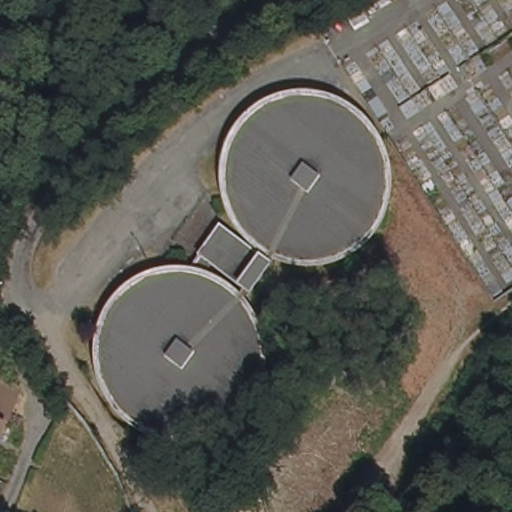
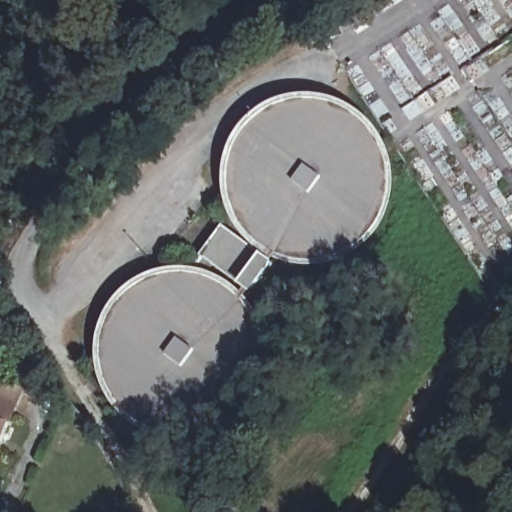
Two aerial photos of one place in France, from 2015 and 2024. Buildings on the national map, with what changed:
unchanged [(22,389),(0,449),(0,380),(22,389)]

